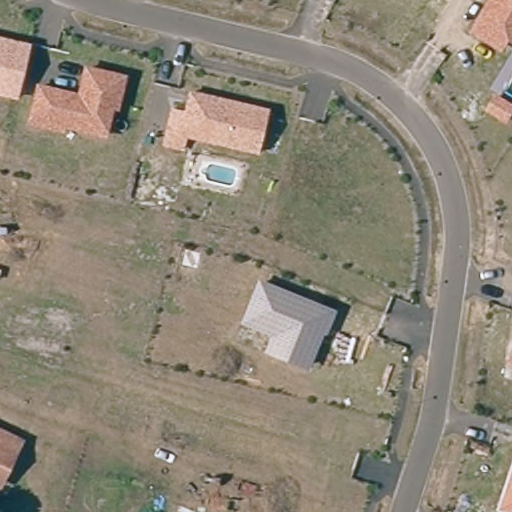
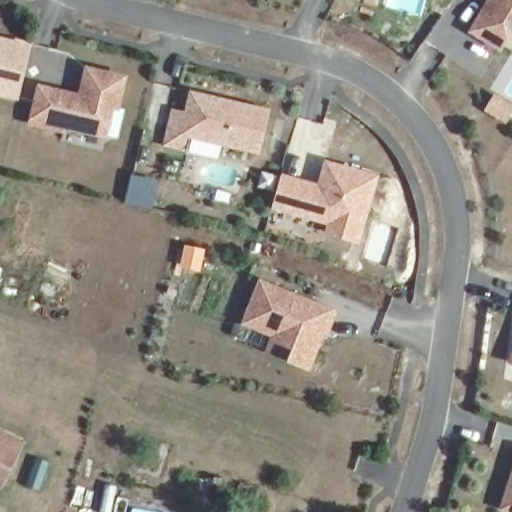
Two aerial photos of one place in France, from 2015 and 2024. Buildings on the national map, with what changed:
unchanged [(485,1),(485,0),(512,0),(512,46),(507,42),(501,53),(467,34),(485,1)]
unchanged [(0,97),(0,37),(31,45),(19,101),(0,97)]
unchanged [(27,126),(36,84),(78,93),(83,67),(127,76),(120,114),(114,112),(109,139),(65,131),(65,135),(27,126)]
unchanged [(186,140),(184,151),(162,146),(171,108),(184,111),(188,90),(270,110),(259,156),(186,140)]
new [(379,174),(362,242),(324,233),(326,223),(272,208),(282,172),(319,183),(325,159),(379,174)]
unchanged [(264,353),(270,337),(240,326),(258,280),(337,310),(328,337),(324,336),(310,372),(264,353)]
unchanged [(512,351),(512,365),(508,363),(512,351)]
unchanged [(3,488),(0,487),(0,431),(24,443),(3,488)]
unchanged [(512,467),(512,512),(508,512),(499,509),(512,467)]

